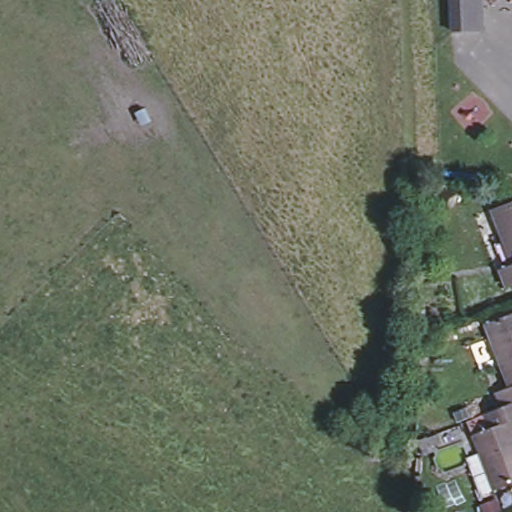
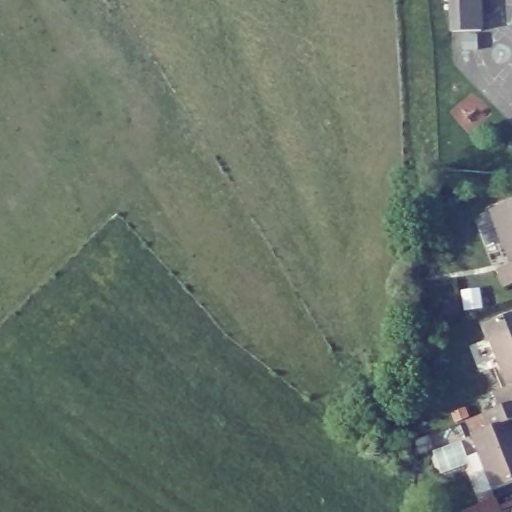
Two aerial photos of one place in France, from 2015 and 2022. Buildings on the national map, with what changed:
unchanged [(481,35),(454,35),(453,0),(481,0),(481,35)]
unchanged [(498,272),(510,266),(489,213),(512,204),(512,286),(505,289),(498,272)]
unchanged [(490,426),(485,411),(500,405),(495,390),(510,384),(490,334),(485,321),(508,311),(512,309),(512,417),(512,479),(495,487),(472,433),(490,426)]

